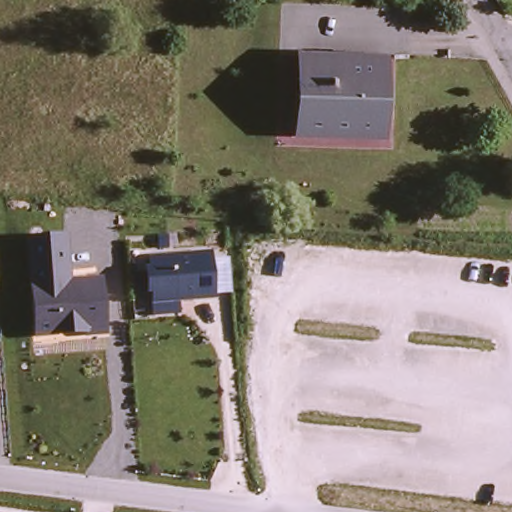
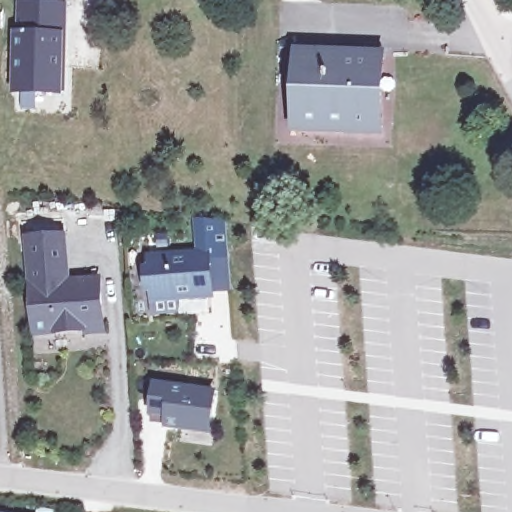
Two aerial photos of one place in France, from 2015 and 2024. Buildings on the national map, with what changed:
new [(16,33),(22,33),(22,4),(60,4),(58,65),(63,65),(62,91),(15,90),(16,33)]
unchanged [(384,61),(380,135),(299,129),(304,56),(384,61)]
unchanged [(35,330),(29,237),(66,233),(71,281),(102,280),(105,324),(35,330)]
unchanged [(204,253),(207,295),(148,299),(145,257),(204,253)]
new [(153,382),(217,390),(212,435),(162,428),(163,424),(149,422),(153,382)]

